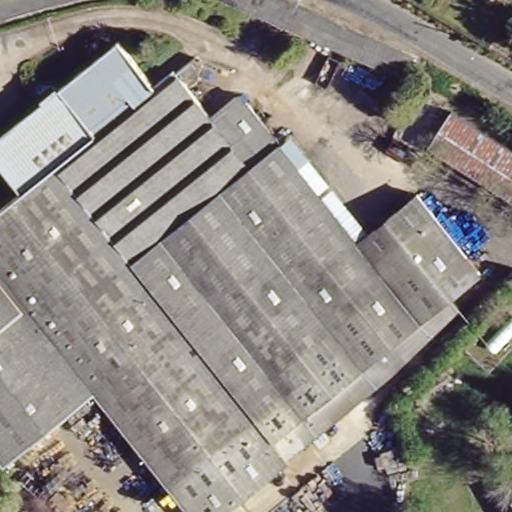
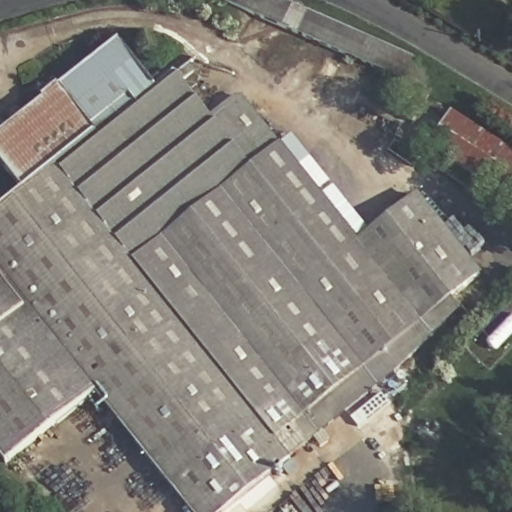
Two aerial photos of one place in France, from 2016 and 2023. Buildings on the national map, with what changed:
unchanged [(404,82),(303,30),(307,22),(305,21),(300,30),(239,0),(296,0),(364,30),(415,62),(404,82)]
unchanged [(23,191),(0,161),(0,138),(123,44),(159,90),(178,77),(213,122),(246,98),(362,245),(421,201),(482,277),(437,315),(446,326),(393,379),(285,461),(287,464),(223,512),(184,512),(91,393),(80,402),(0,301),(0,208),(23,191)]
unchanged [(416,122),(402,115),(417,86),(431,94),(416,122)]
unchanged [(427,155),(447,119),(512,155),(512,201),(427,155)]
unchanged [(80,402),(56,420),(0,339),(0,301),(80,402)]
unchanged [(2,463),(0,461),(0,339),(56,420),(2,463)]
unchanged [(512,429),(512,444),(506,433),(512,429)]

